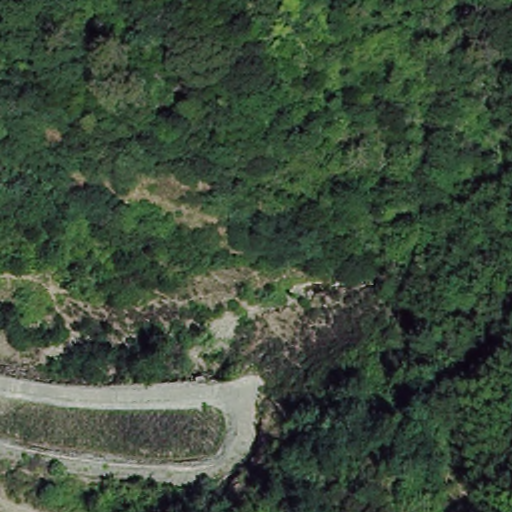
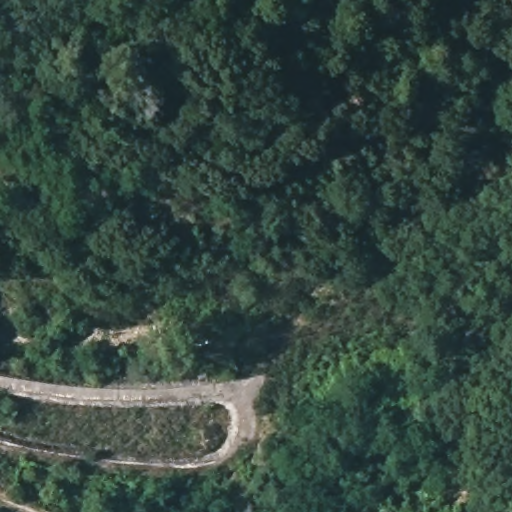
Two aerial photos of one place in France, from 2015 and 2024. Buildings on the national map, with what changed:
unchanged [(310,405),(334,409),(331,428),(307,425),(310,405)]

